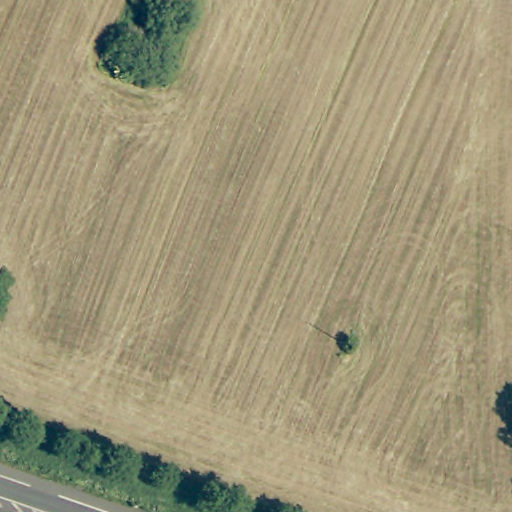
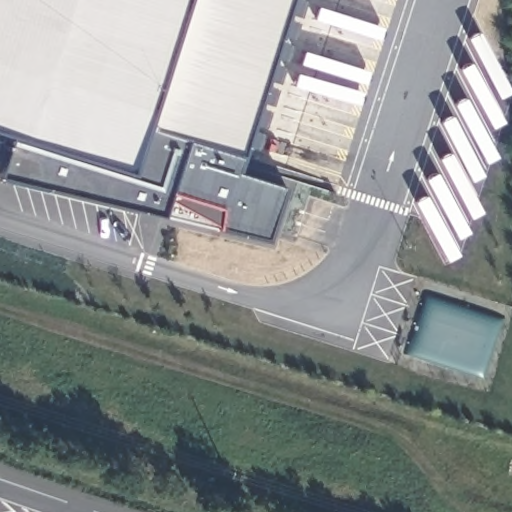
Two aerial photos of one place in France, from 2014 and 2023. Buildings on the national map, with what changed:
new [(280,187),(263,238),(0,175),(0,162),(6,134),(0,131),(0,0),(288,0),(234,172),(280,187)]

